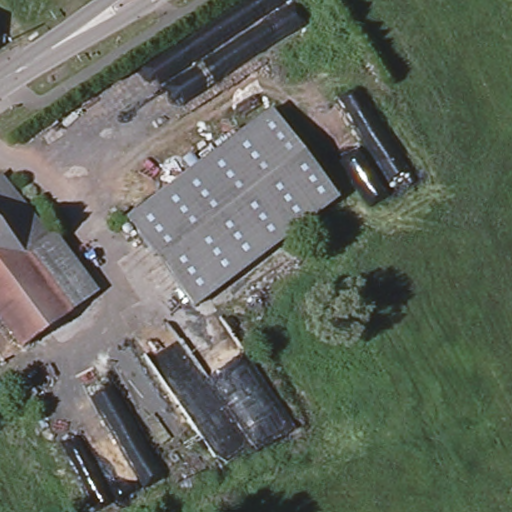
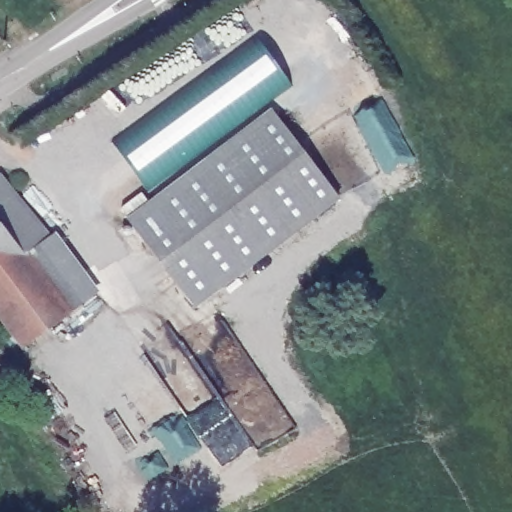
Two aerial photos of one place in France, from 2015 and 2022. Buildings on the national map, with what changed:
new [(295,85),(149,196),(111,140),(254,39),(295,85)]
unchanged [(273,114),(340,202),(254,269),(244,273),(185,295),(130,223),(273,114)]
unchanged [(51,238),(30,254),(0,217),(0,175),(1,175),(51,238)]
unchanged [(0,311),(0,217),(30,254),(27,255),(70,312),(27,343),(0,311)]
unchanged [(70,312),(27,255),(30,254),(51,238),(52,237),(96,293),(74,309),(70,312)]

